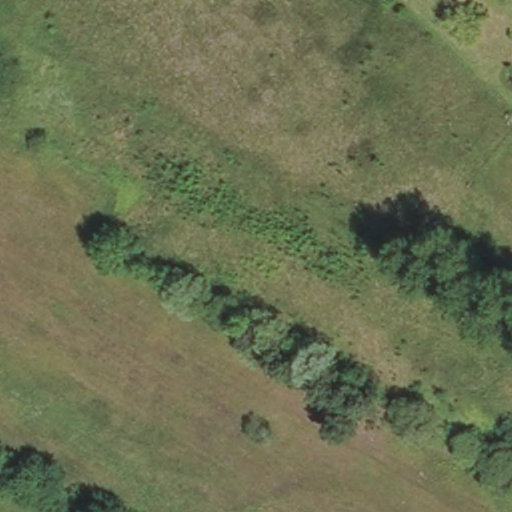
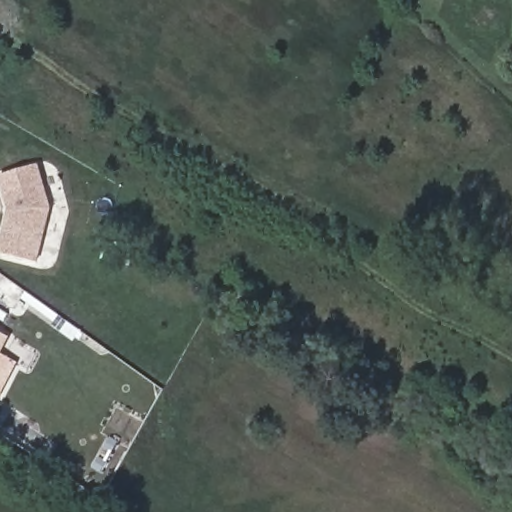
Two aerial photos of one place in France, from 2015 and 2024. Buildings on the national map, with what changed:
new [(36,164),(49,210),(36,259),(0,250),(0,240),(7,210),(0,185),(0,176),(36,164)]
new [(8,339),(0,353),(0,335),(8,339)]
new [(19,364),(0,398),(0,355),(19,364)]

